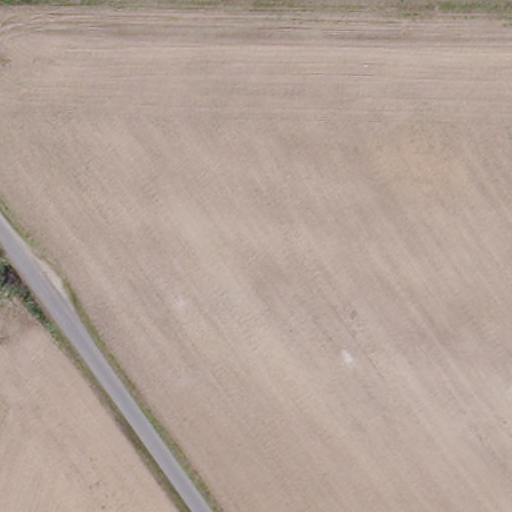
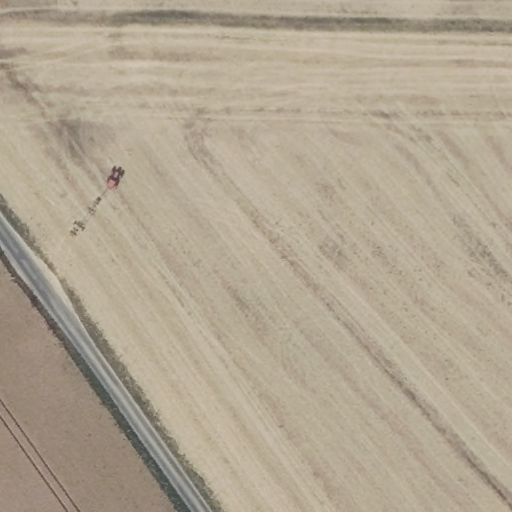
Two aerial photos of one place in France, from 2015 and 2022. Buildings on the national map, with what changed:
[]

